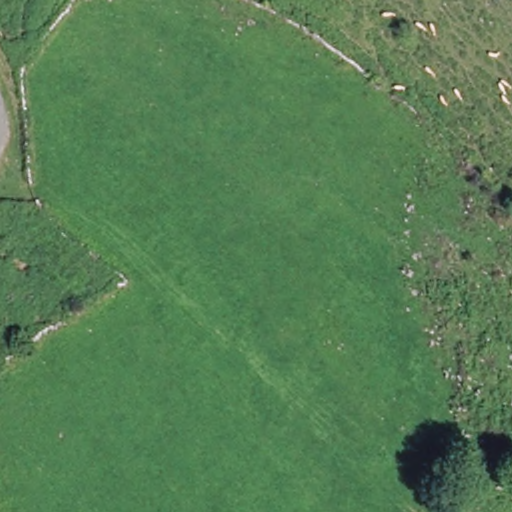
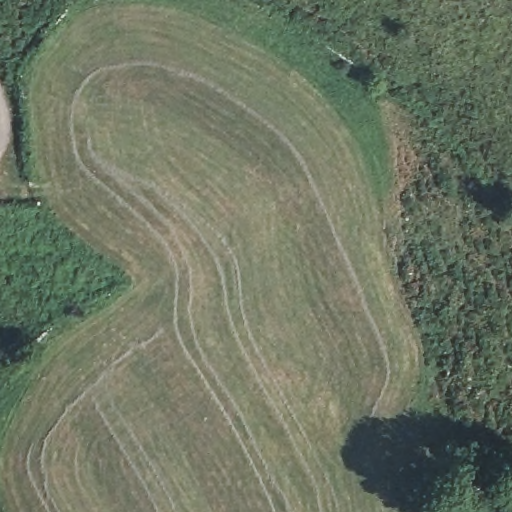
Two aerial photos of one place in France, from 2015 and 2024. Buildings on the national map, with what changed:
[]

